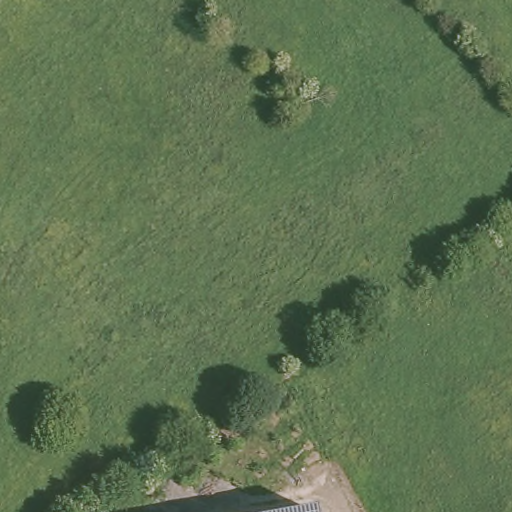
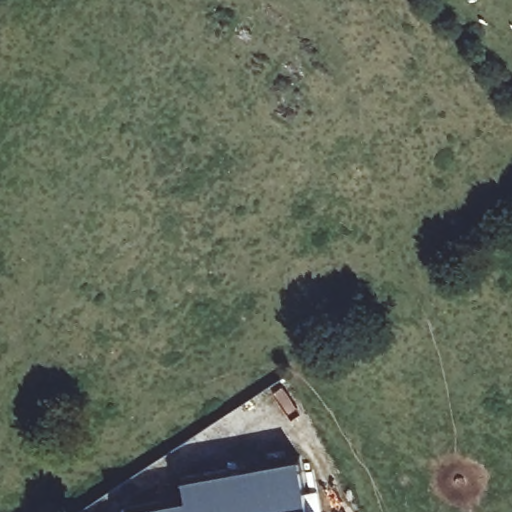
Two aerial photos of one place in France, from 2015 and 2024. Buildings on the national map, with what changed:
new [(125,507),(187,497),(182,478),(299,457),(313,512),(126,512),(125,507)]

